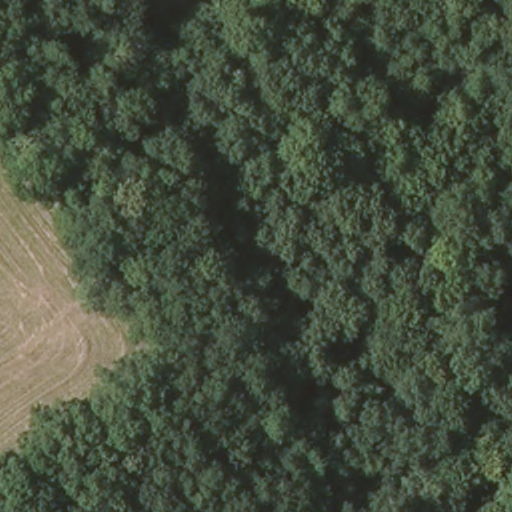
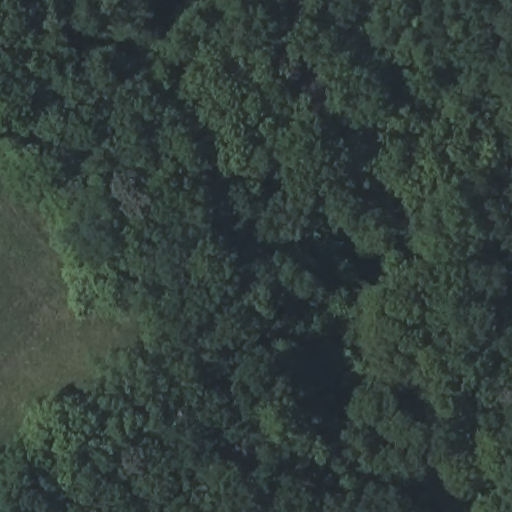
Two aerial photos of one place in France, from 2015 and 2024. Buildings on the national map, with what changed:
[]

